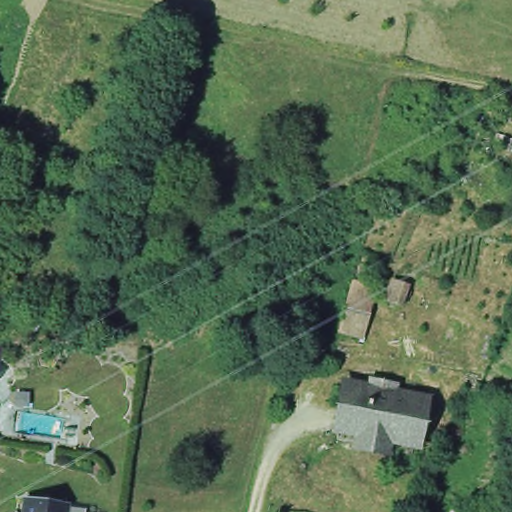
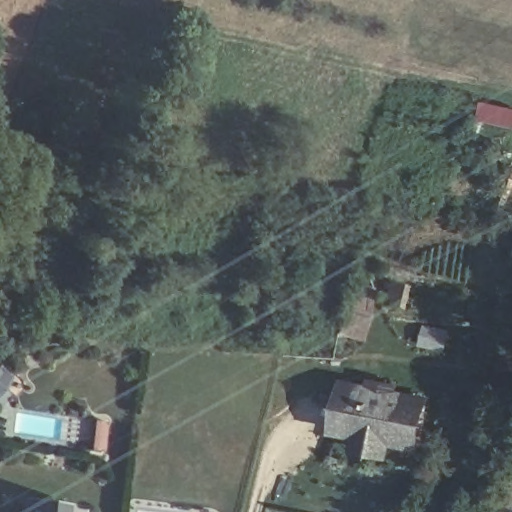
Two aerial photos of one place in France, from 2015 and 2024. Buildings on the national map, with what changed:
unchanged [(384,301),(391,281),(405,286),(399,305),(384,301)]
unchanged [(243,306),(271,311),(267,333),(239,328),(243,306)]
unchanged [(342,313),(343,309),(364,314),(359,334),(338,328),(342,313)]
unchanged [(420,448),(345,435),(355,380),(430,394),(420,448)]
unchanged [(58,506),(57,512),(19,512),(20,501),(58,506)]
unchanged [(79,509),(79,512),(57,512),(58,506),(79,509)]

